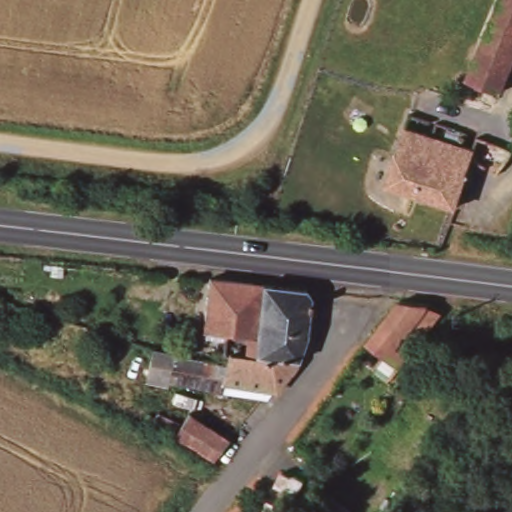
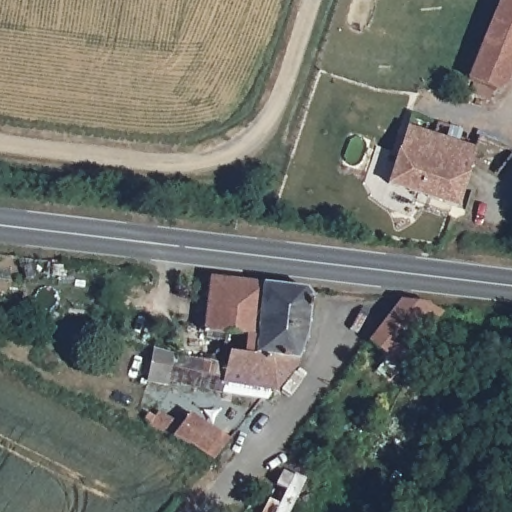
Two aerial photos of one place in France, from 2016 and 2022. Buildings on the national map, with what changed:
unchanged [(506,0),(512,0),(512,42),(492,33),(506,0)]
unchanged [(512,42),(512,77),(506,92),(473,79),(492,33),(512,42)]
unchanged [(415,114),(512,151),(512,162),(501,175),(481,161),(461,207),(392,185),(415,114)]
unchanged [(309,341),(280,337),(266,336),(265,345),(231,341),(209,338),(209,337),(214,284),(310,295),(315,302),(311,341),(309,341)]
unchanged [(405,301),(433,304),(434,306),(441,312),(403,368),(372,343),(405,301)]
unchanged [(215,365),(217,362),(219,361),(225,362),(231,341),(265,345),(266,336),(280,337),(309,341),(311,341),(310,342),(302,366),(301,370),(299,372),(295,378),(270,373),(237,367),(229,365),(226,375),(213,371),(215,365)]
unchanged [(150,387),(156,355),(201,367),(213,371),(226,375),(229,365),(237,367),(270,373),(295,378),(280,396),(277,396),(229,388),(227,397),(171,386),(170,391),(150,387)]
unchanged [(89,400),(96,382),(140,400),(133,417),(89,400)]
unchanged [(196,446),(176,437),(152,425),(155,423),(149,419),(152,413),(159,417),(162,412),(186,424),(194,413),(234,440),(217,461),(196,446)]

